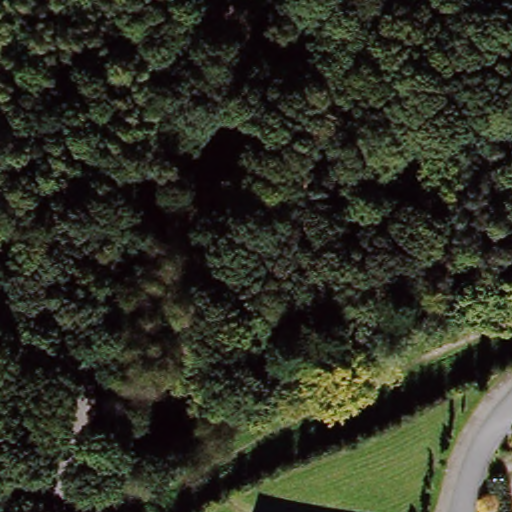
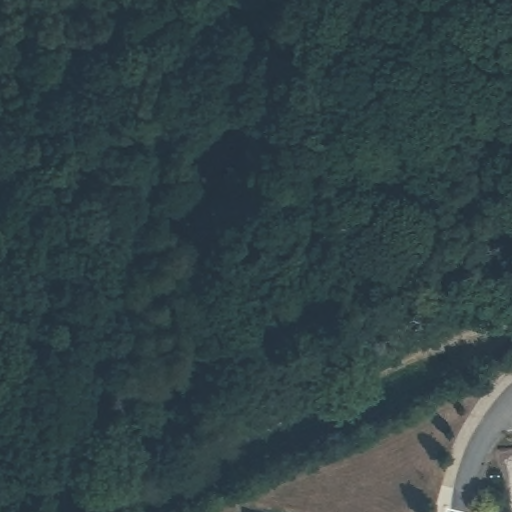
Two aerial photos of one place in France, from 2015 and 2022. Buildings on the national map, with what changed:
[]

